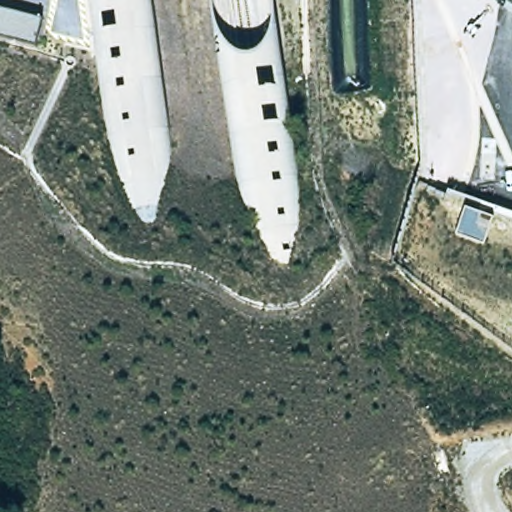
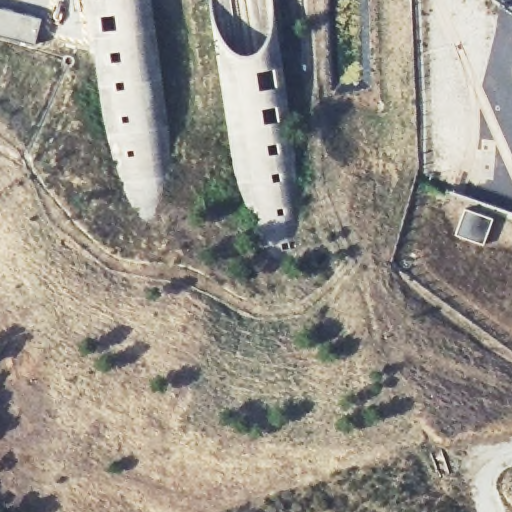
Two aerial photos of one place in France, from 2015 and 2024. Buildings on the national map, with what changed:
unchanged [(31,40),(0,32),(0,3),(37,12),(31,40)]
unchanged [(486,245),(456,235),(465,205),(494,217),(486,245)]

